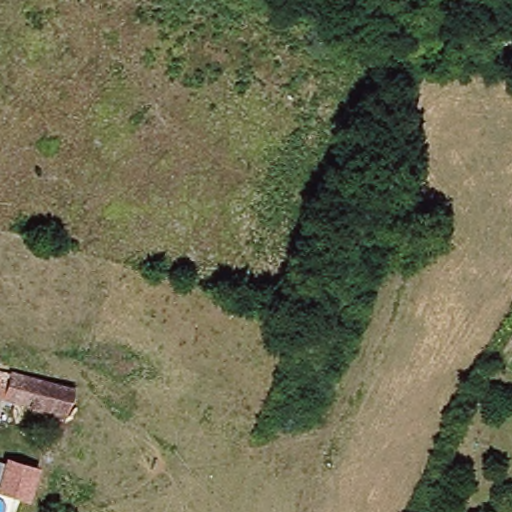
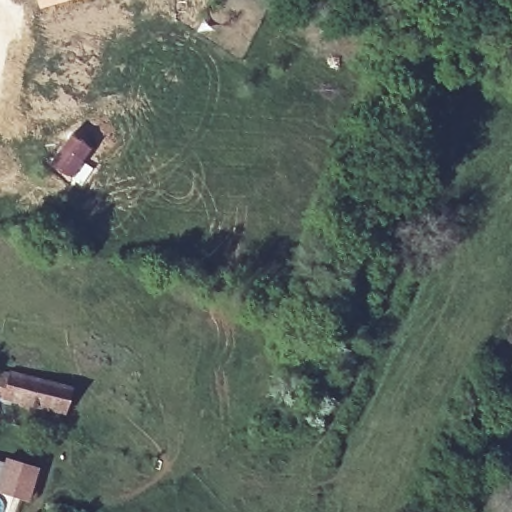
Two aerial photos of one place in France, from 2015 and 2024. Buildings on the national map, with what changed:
new [(38,0),(69,0),(40,8),(38,0)]
unchanged [(71,418),(0,400),(0,371),(54,386),(78,392),(71,418)]
unchanged [(0,465),(11,468),(13,462),(41,469),(38,484),(33,501),(24,500),(4,495),(0,494),(0,465)]

